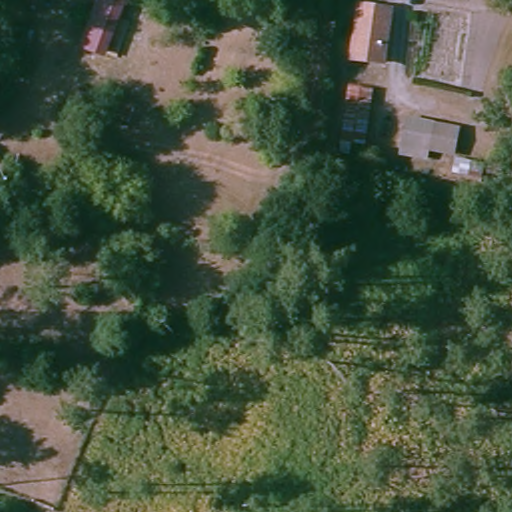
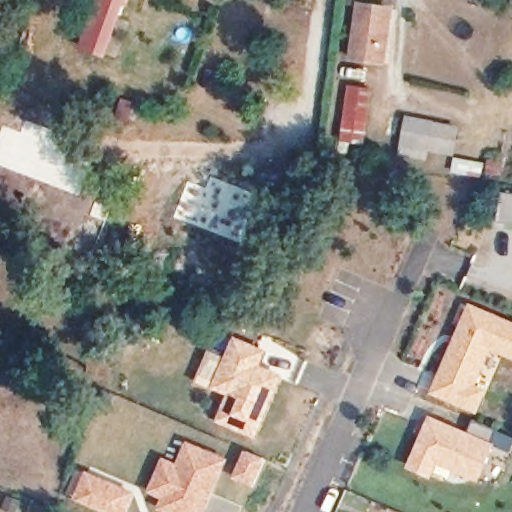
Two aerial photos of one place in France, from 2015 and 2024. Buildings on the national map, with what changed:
unchanged [(130,0),(127,6),(108,0),(130,0)]
unchanged [(350,60),(357,9),(394,13),(393,25),(387,64),(372,61),(350,60)]
unchanged [(367,147),(355,146),(353,158),(338,155),(346,88),(372,89),(367,147)]
unchanged [(461,129),(456,159),(401,149),(405,119),(461,129)]
new [(186,180),(205,187),(209,176),(268,200),(249,246),(172,216),(186,180)]
new [(499,220),(502,192),(512,193),(512,222),(499,220)]
new [(512,322),(512,360),(491,350),(477,384),(488,389),(478,414),(429,393),(470,303),(512,322)]
new [(261,365),(282,373),(255,439),(215,421),(227,393),(212,387),(232,334),(267,349),(261,365)]
new [(469,432),(475,421),(512,437),(512,446),(510,451),(494,444),(477,482),(437,464),(431,479),(406,469),(430,415),(469,432)]
new [(177,464),(187,441),(227,459),(205,512),(160,512),(155,510),(162,498),(147,492),(162,457),(177,464)]
new [(127,512),(104,512),(74,499),(86,471),(135,492),(127,512)]

